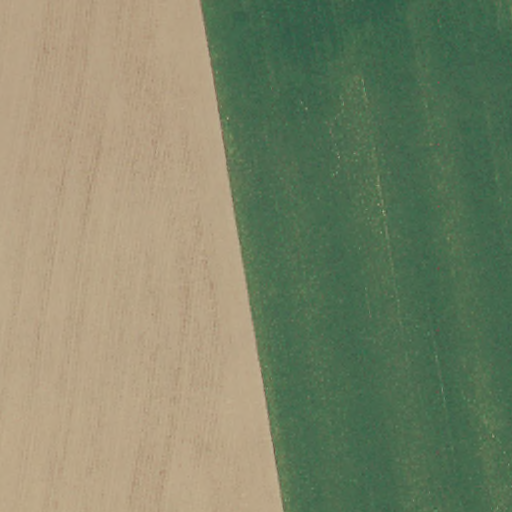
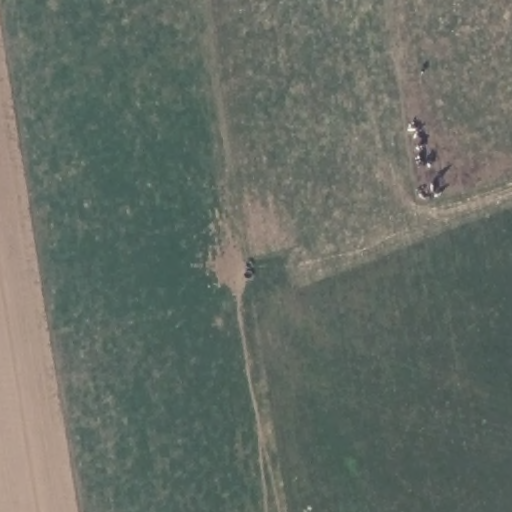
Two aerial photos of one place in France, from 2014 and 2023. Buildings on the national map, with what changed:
[]

